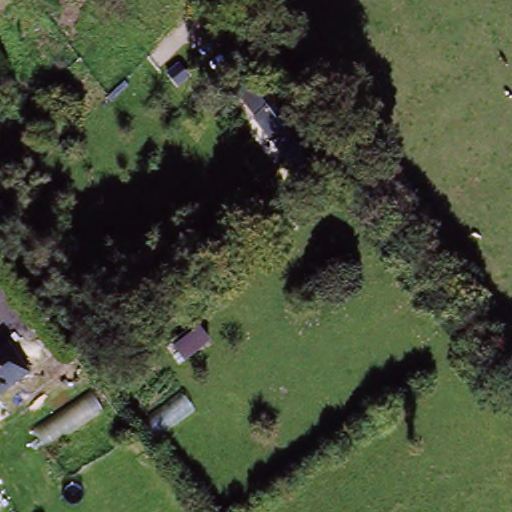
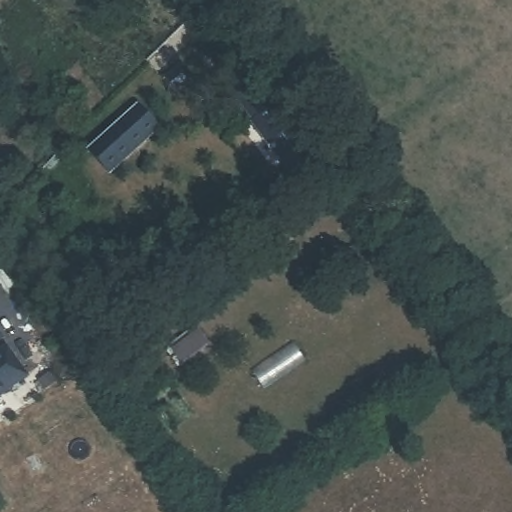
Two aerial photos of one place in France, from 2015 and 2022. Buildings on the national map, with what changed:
unchanged [(264,96),(310,158),(296,168),(250,106),(264,96)]
new [(109,166),(91,145),(141,103),(159,125),(109,166)]
unchanged [(278,182),(231,119),(250,106),(296,168),(278,182)]
unchanged [(21,380),(0,396),(0,352),(21,380)]

